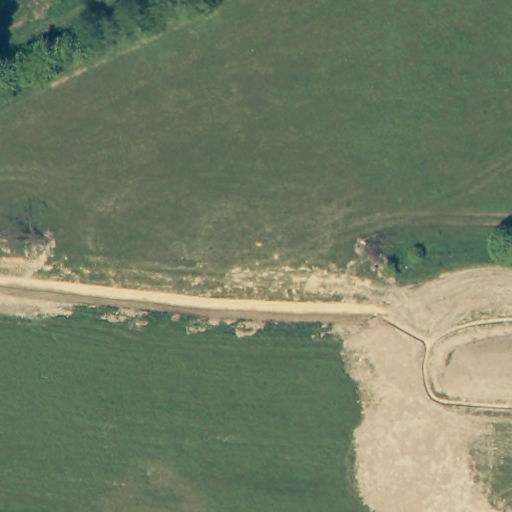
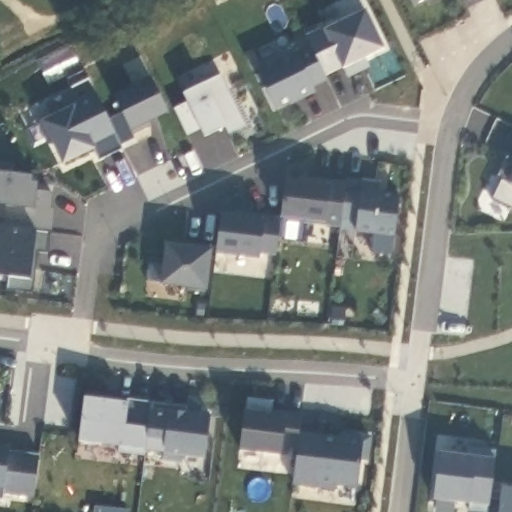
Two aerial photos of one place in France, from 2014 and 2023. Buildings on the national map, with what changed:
new [(413,7),(410,0),(428,0),(413,7)]
new [(365,57),(372,68),(347,79),(344,68),(326,74),(328,80),(314,86),(317,92),(293,104),(292,101),(275,108),(257,72),(312,48),(306,34),(366,8),(384,47),(365,57)]
new [(228,134),(226,126),(204,136),(201,129),(187,135),(174,109),(188,103),(183,92),(205,82),(220,74),(245,123),(228,134)]
new [(153,120),(155,125),(134,134),(131,130),(113,94),(152,75),(169,112),(153,120)]
new [(98,157),(94,149),(62,163),(40,120),(63,109),(59,98),(72,93),(76,101),(96,91),(121,147),(98,157)]
new [(38,190),(56,193),(48,254),(38,253),(33,292),(7,289),(10,276),(0,275),(0,225),(8,226),(11,204),(0,203),(0,162),(15,163),(13,172),(36,175),(38,190)]
new [(502,178),(508,180),(512,172),(512,209),(492,200),(502,178)]
new [(379,191),(403,193),(396,236),(356,232),(356,227),(326,222),(279,216),(286,177),(303,179),(303,174),(347,179),(348,176),(381,181),(379,191)]
new [(277,255),(262,253),(261,259),(215,253),(220,212),(264,215),(279,216),(277,255)]
new [(208,289),(161,284),(166,242),(212,247),(208,289)]
new [(188,411),(211,413),(205,458),(184,455),(184,462),(164,459),(165,452),(146,448),(79,441),(84,396),(132,401),(132,397),(188,405),(188,411)]
new [(273,409),(304,413),(300,431),(342,435),(343,433),(371,436),(367,460),(361,458),(357,486),(337,485),(337,488),(294,483),(298,445),(284,444),(282,453),(240,449),(245,410),(246,397),(275,400),(273,409)]
new [(36,496),(5,492),(4,499),(0,498),(0,444),(11,446),(10,450),(41,454),(36,496)]
new [(468,445),(496,449),(487,512),(474,512),(468,511),(471,503),(433,498),(440,450),(469,454),(468,445)]
unchanged [(512,512),(497,512),(501,486),(512,488),(512,512)]

